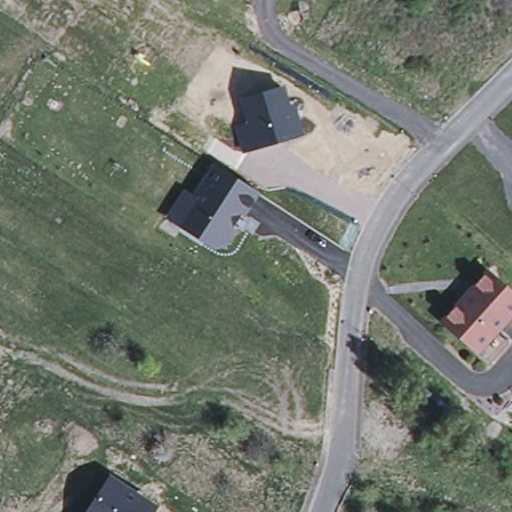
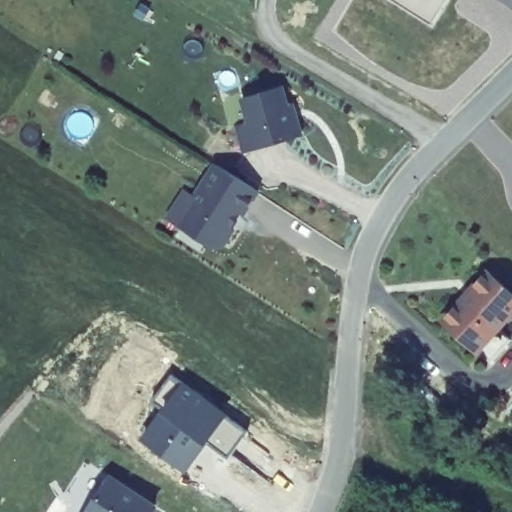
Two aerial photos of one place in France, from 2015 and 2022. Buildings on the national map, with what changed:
new [(431,24),(389,0),(445,0),(431,24)]
unchanged [(291,105),(296,103),(305,133),(241,154),(233,126),(246,122),(239,97),(284,84),(291,105)]
unchanged [(216,250),(183,229),(169,220),(181,202),(186,194),(197,201),(219,166),(261,193),(245,217),(242,215),(233,230),(236,232),(233,236),(227,247),(216,250)]
unchanged [(473,284),(488,267),(512,290),(512,307),(504,317),(474,290),(476,287),(473,284)]
unchanged [(447,312),(456,302),(462,302),(474,290),(504,317),(498,324),(510,335),(490,358),(447,319),(447,312)]
new [(161,410),(153,401),(172,378),(244,431),(230,457),(206,441),(184,476),(138,438),(161,410)]
unchanged [(157,506),(153,512),(87,512),(111,477),(157,506)]

